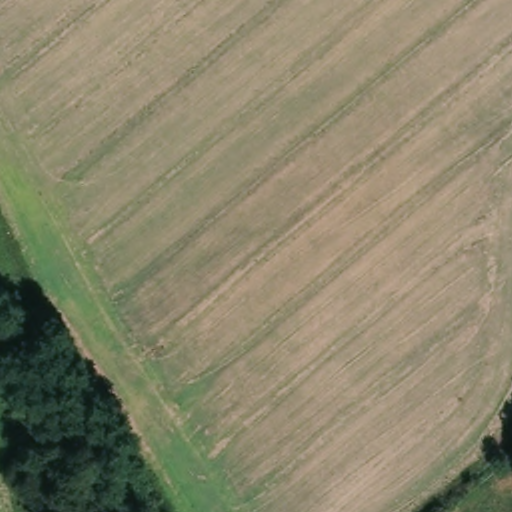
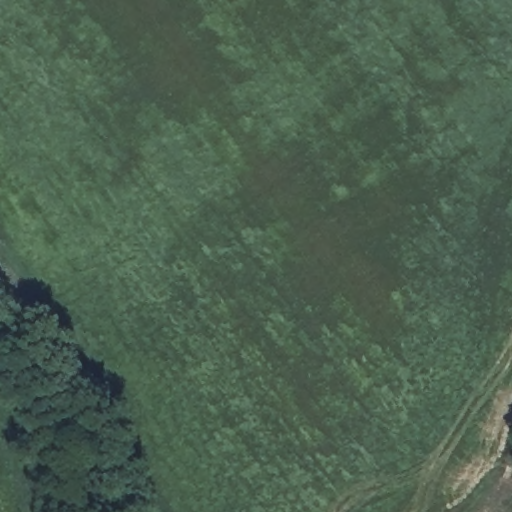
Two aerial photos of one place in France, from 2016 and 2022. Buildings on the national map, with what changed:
[]

